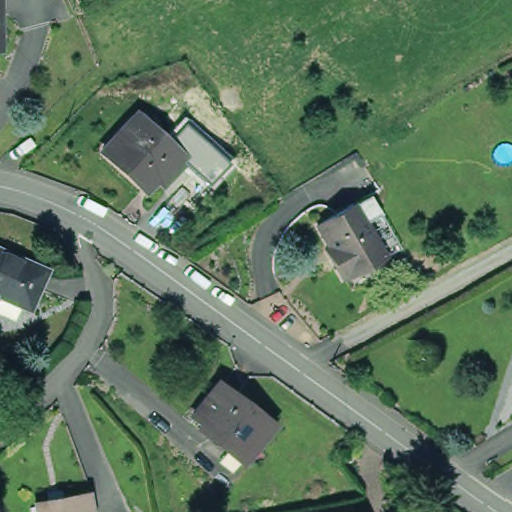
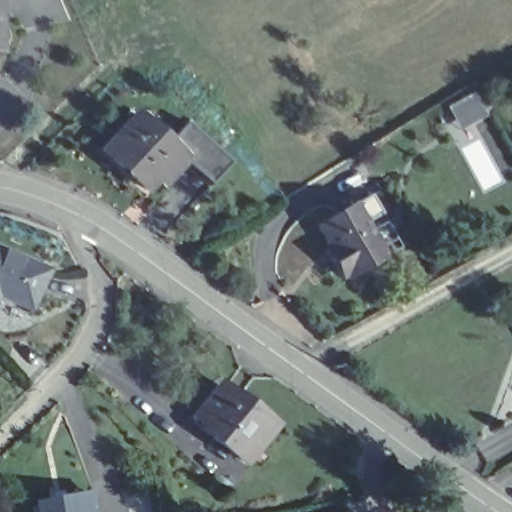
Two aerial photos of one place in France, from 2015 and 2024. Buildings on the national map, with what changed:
unchanged [(3,0),(3,19),(4,31),(0,31),(0,0),(3,0)]
new [(475,93),(488,115),(462,128),(450,107),(475,93)]
unchanged [(160,175),(152,185),(108,146),(118,135),(139,111),(182,150),(191,158),(171,179),(163,172),(160,175)]
unchanged [(366,202),(394,255),(378,264),(350,210),(366,202)]
unchanged [(325,250),(313,229),(350,210),(378,264),(339,283),(338,280),(335,282),(323,263),(318,254),(325,250)]
unchanged [(7,299),(2,314),(0,313),(0,251),(57,274),(40,314),(7,299)]
unchanged [(247,463),(229,448),(233,442),(211,422),(237,392),(290,436),(263,467),(258,473),(247,463)]
unchanged [(81,498),(84,512),(38,512),(37,506),(81,498)]

